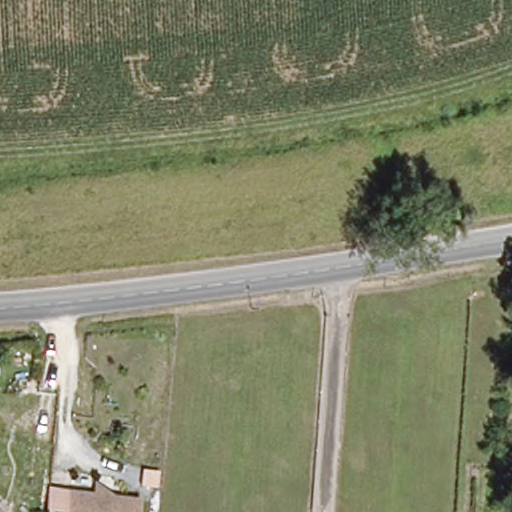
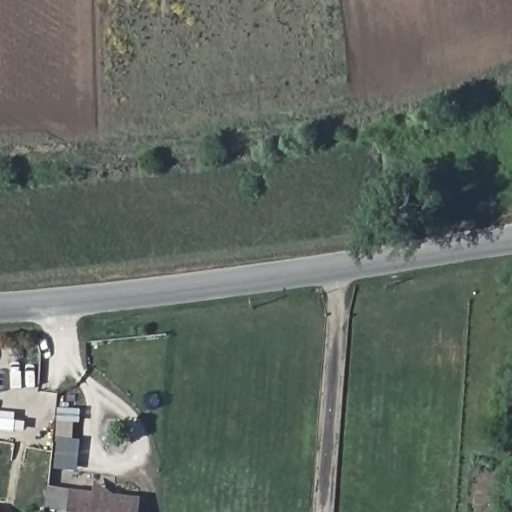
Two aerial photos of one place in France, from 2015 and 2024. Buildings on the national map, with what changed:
unchanged [(68,508),(70,489),(85,490),(126,495),(140,496),(138,512),(45,512),(46,505),(68,508)]

